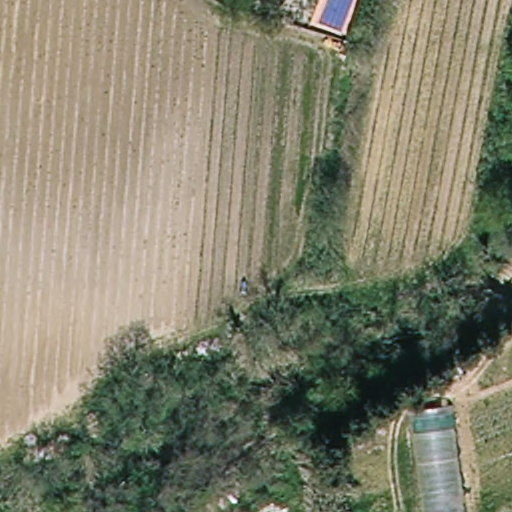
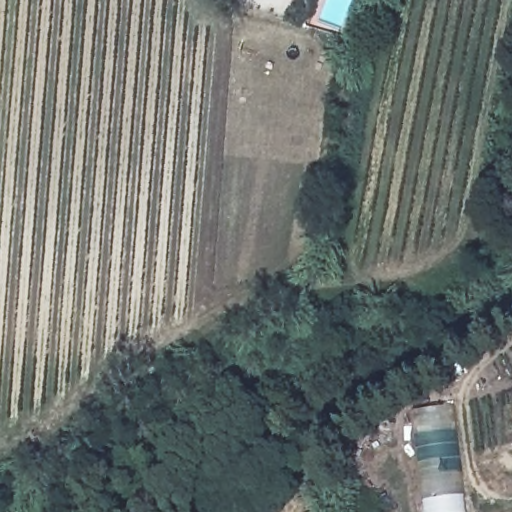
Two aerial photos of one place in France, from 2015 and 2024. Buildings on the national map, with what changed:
unchanged [(462,512),(430,512),(417,407),(450,403),(462,512)]

